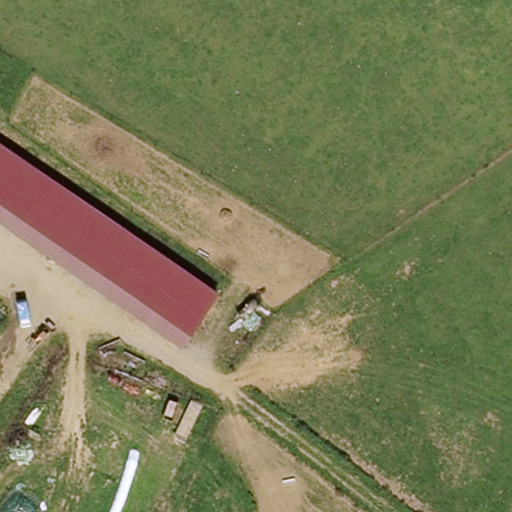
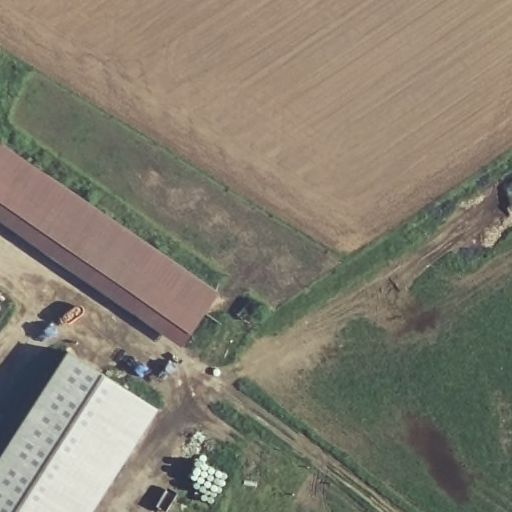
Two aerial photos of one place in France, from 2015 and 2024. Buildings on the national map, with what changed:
unchanged [(0,218),(0,140),(221,292),(185,344),(0,218)]
new [(0,456),(67,350),(157,410),(91,512),(0,512),(0,456)]

